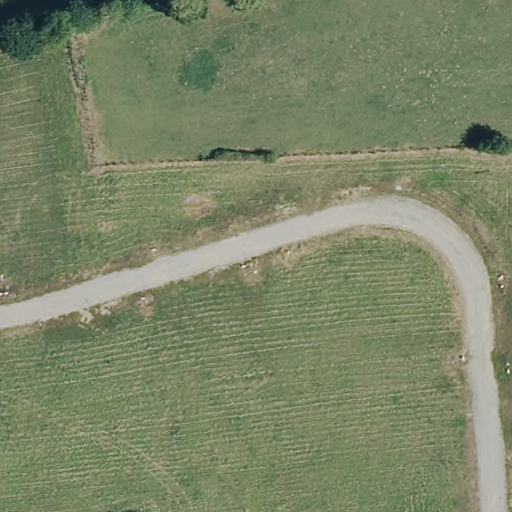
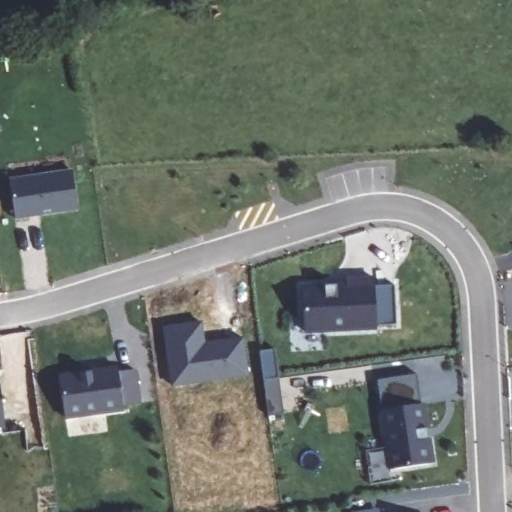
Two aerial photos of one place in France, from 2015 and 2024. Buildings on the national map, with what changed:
new [(21,215),(15,177),(78,169),(83,206),(21,215)]
new [(307,331),(306,285),(350,283),(350,278),(378,278),(380,327),(307,331)]
new [(380,325),(378,287),(393,286),(397,323),(380,325)]
new [(203,341),(245,336),(249,376),(172,386),(164,327),(202,322),(203,341)]
new [(283,413),(268,415),(260,352),(275,350),(283,413)]
new [(142,402),(124,405),(125,411),(66,419),(59,373),(119,365),(120,370),(137,368),(142,402)]
new [(420,403),(388,408),(382,410),(378,380),(416,375),(420,403)]
new [(5,426),(0,427),(0,382),(5,426)]
new [(388,408),(430,402),(438,462),(396,466),(388,408)]

